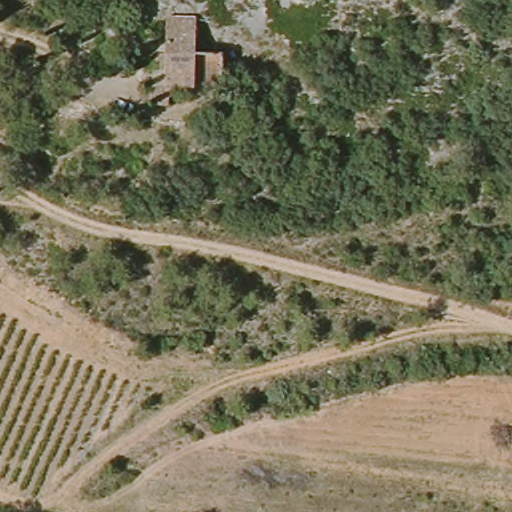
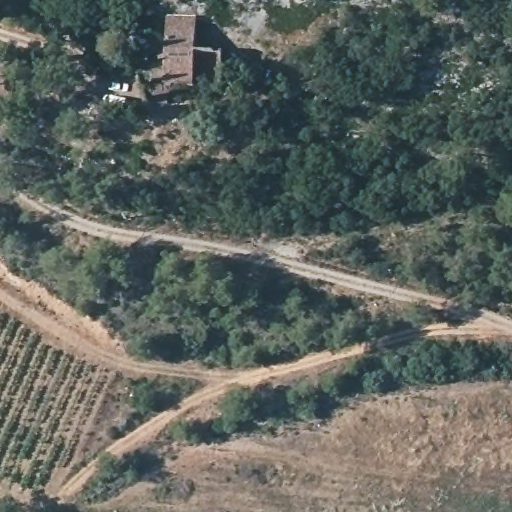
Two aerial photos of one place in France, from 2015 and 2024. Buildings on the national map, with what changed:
unchanged [(165,17),(193,22),(191,55),(189,87),(160,84),(162,37),(165,17)]

